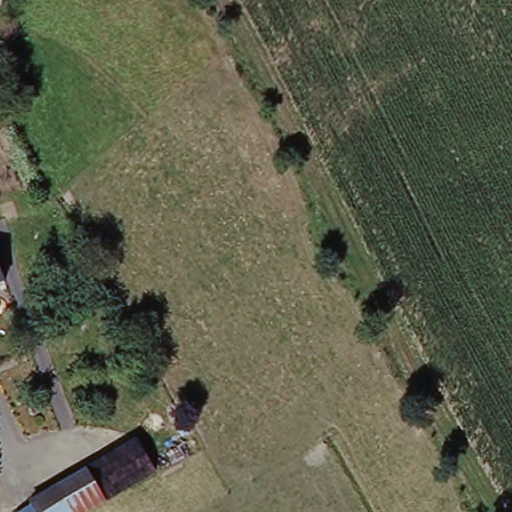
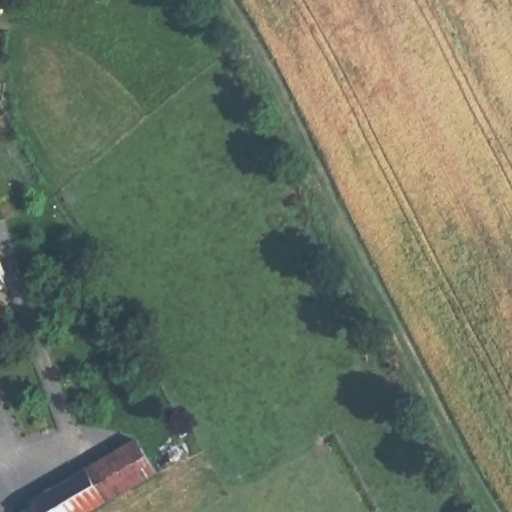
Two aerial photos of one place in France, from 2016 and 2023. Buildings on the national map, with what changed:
unchanged [(27,500),(88,471),(107,462),(127,493),(125,494),(105,504),(89,512),(21,512),(30,507),(27,500)]

